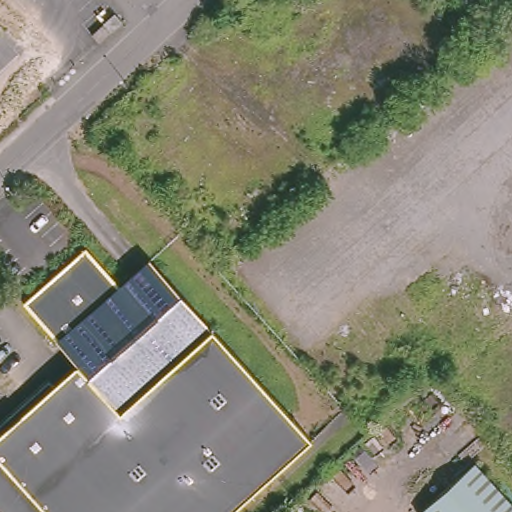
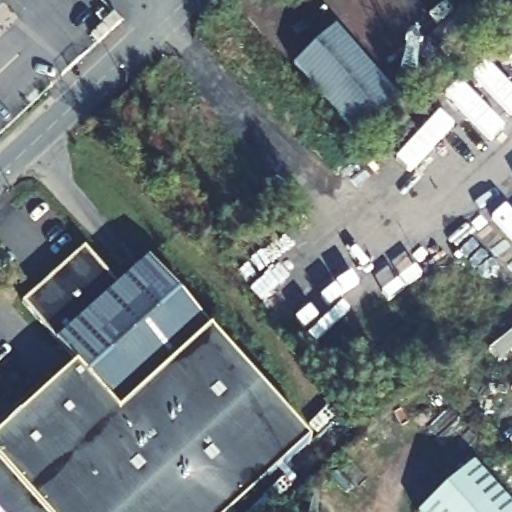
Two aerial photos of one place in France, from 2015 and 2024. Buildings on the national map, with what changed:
new [(402,101),(362,140),(293,65),(337,26),(402,101)]
unchanged [(85,242),(120,280),(150,253),(216,326),(124,406),(78,358),(23,298),(85,242)]
unchanged [(78,358),(124,406),(216,326),(312,433),(225,512),(50,512),(0,454),(0,429),(17,414),(78,358)]
unchanged [(50,512),(0,512),(0,454),(50,512)]
unchanged [(512,506),(512,512),(420,512),(474,463),(512,506)]

